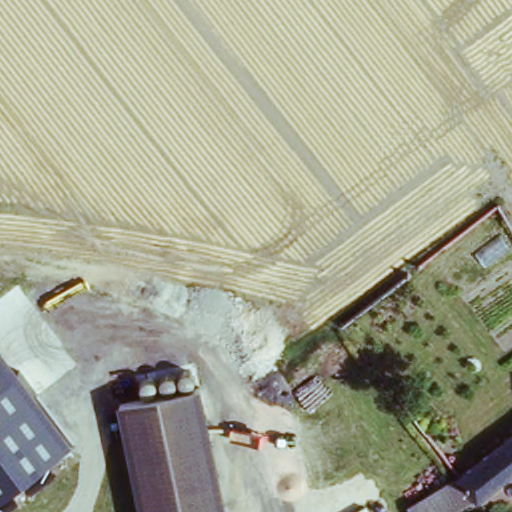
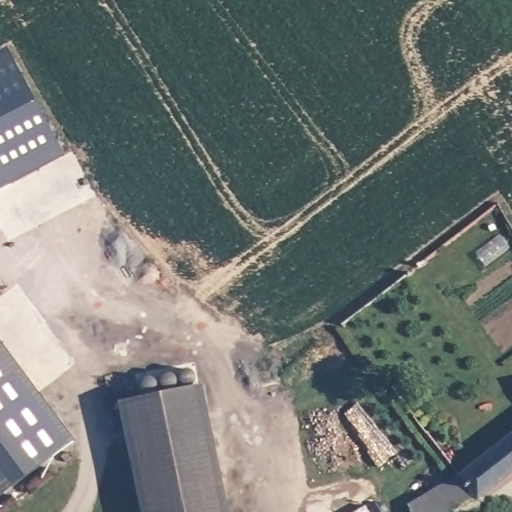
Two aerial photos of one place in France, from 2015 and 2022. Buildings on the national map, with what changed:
new [(5,43),(62,151),(0,184),(0,46),(5,43)]
unchanged [(74,441),(0,499),(0,342),(74,441)]
unchanged [(140,379),(195,368),(200,383),(157,393),(144,396),(140,379)]
unchanged [(119,401),(200,383),(226,512),(141,512),(119,401)]
unchanged [(457,509),(453,512),(407,512),(452,480),(456,477),(512,439),(512,485),(472,512),(459,512),(457,509)]

